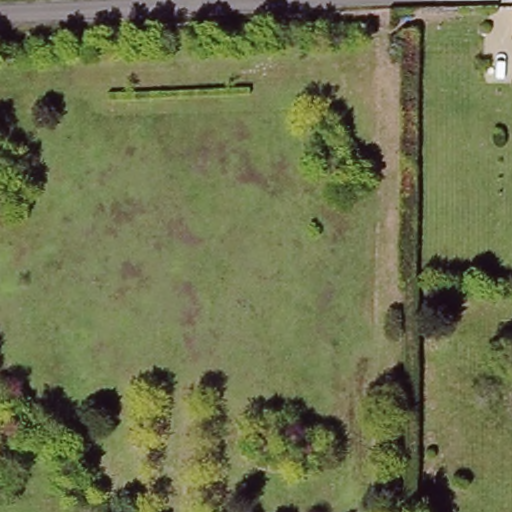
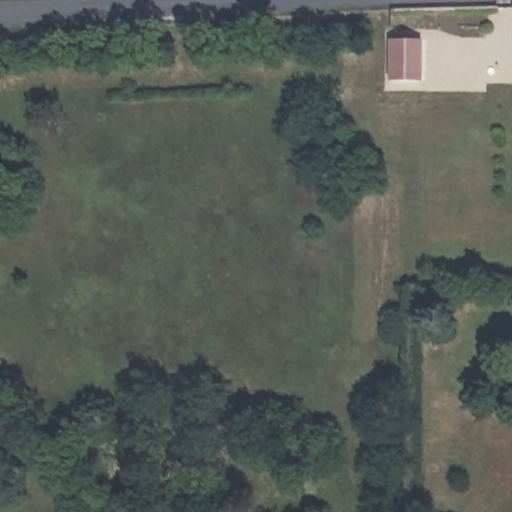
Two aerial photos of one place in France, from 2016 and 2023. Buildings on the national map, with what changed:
new [(421,81),(388,81),(387,38),(421,39),(421,81)]

